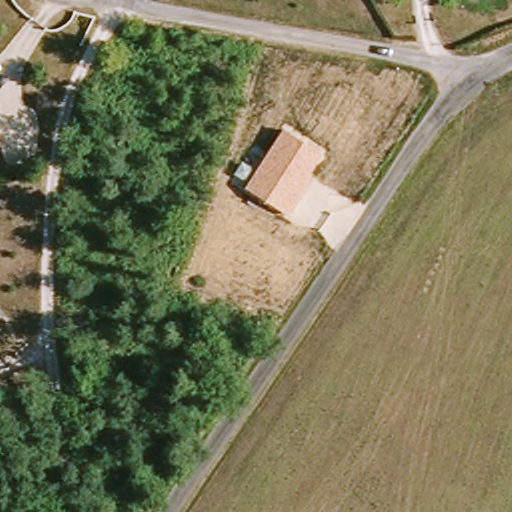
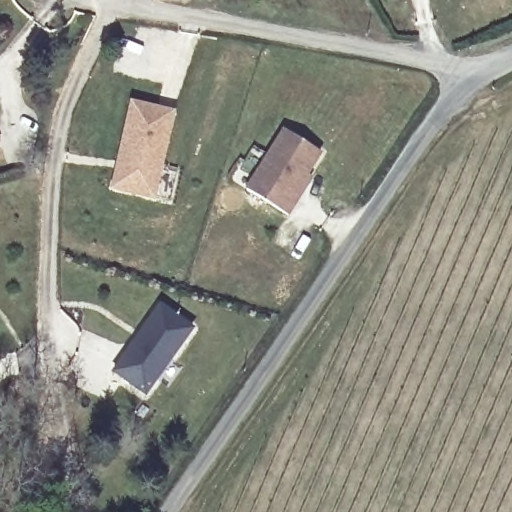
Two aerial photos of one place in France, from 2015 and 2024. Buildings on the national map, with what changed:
new [(131,103),(172,113),(153,199),(115,189),(111,189),(118,162),(131,103)]
unchanged [(8,144),(0,146),(0,123),(1,123),(8,144)]
unchanged [(324,153),(310,177),(313,179),(289,216),(245,188),(283,129),(324,153)]
new [(160,307),(194,329),(148,394),(114,371),(160,307)]

